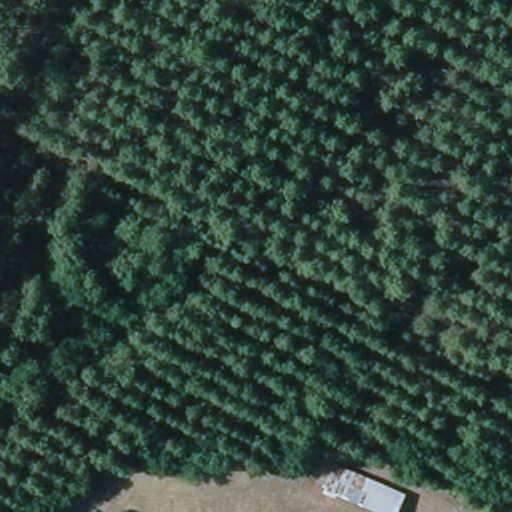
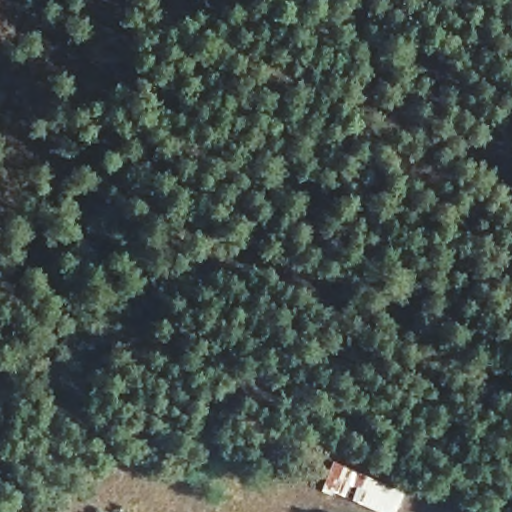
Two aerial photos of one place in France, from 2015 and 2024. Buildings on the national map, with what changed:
unchanged [(322,489),(333,462),(405,493),(396,512),(376,512),(322,489)]

